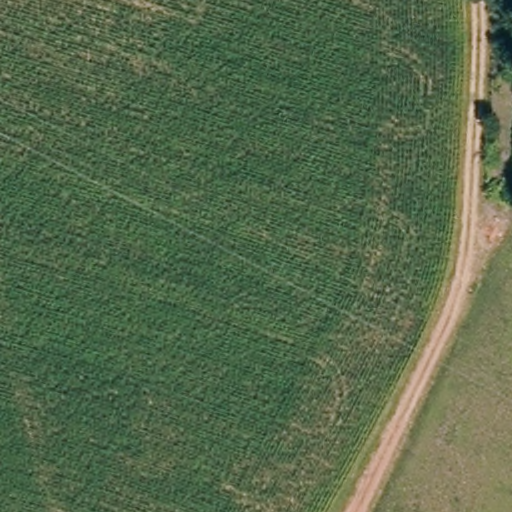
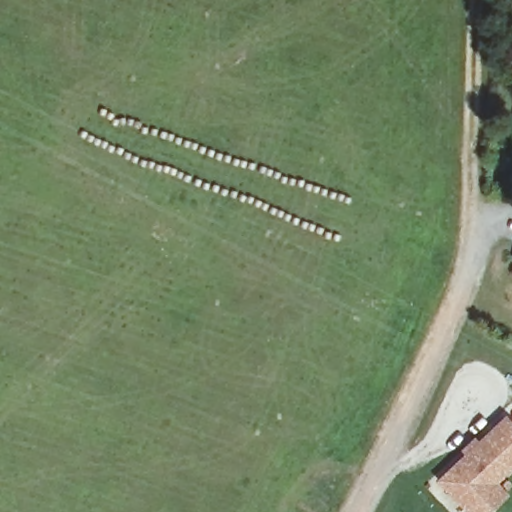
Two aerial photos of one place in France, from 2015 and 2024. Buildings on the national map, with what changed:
new [(495,481),(507,493),(487,512),(466,512),(436,478),(463,451),(460,447),(474,434),(478,439),(503,414),(512,423),(512,465),(495,481)]

